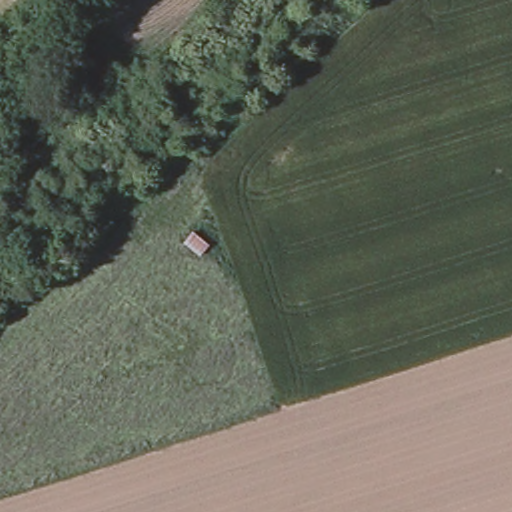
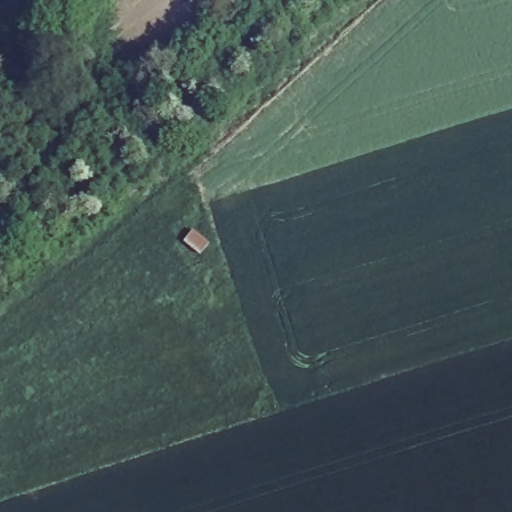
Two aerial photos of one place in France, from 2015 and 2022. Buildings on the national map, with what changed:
unchanged [(210,235),(197,257),(177,245),(191,229),(210,235)]

